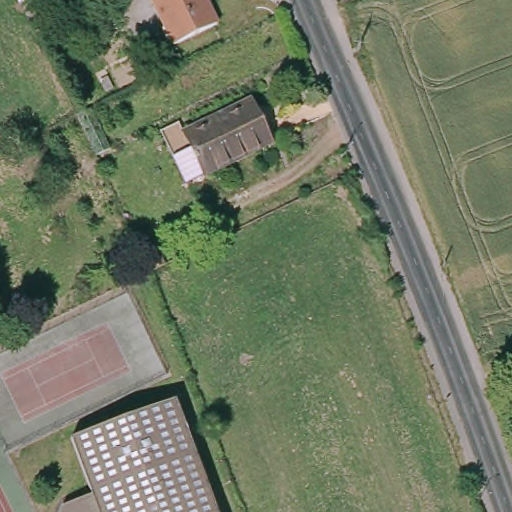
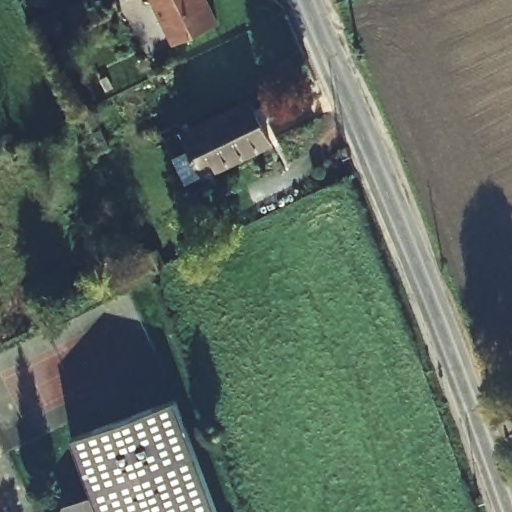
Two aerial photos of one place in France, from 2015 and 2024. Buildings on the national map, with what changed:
unchanged [(32,3),(32,0),(49,0),(47,7),(32,3)]
unchanged [(175,45),(152,0),(203,0),(216,25),(175,45)]
unchanged [(254,94),(275,137),(190,179),(177,153),(194,144),(186,128),(254,94)]
unchanged [(92,109),(111,150),(95,157),(76,116),(92,109)]
unchanged [(158,254),(164,265),(152,272),(146,260),(158,254)]
unchanged [(93,502),(92,499),(72,445),(176,406),(216,512),(66,512),(93,502)]

